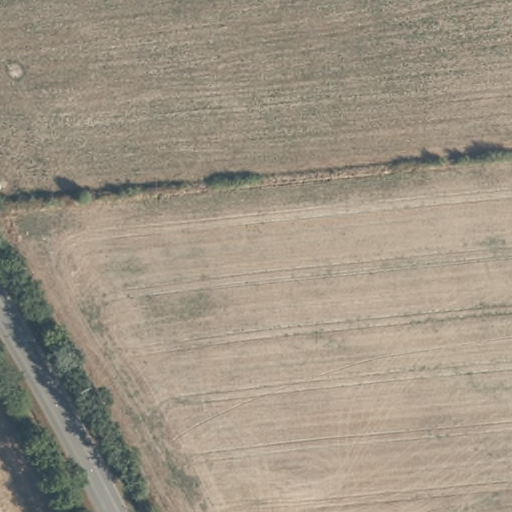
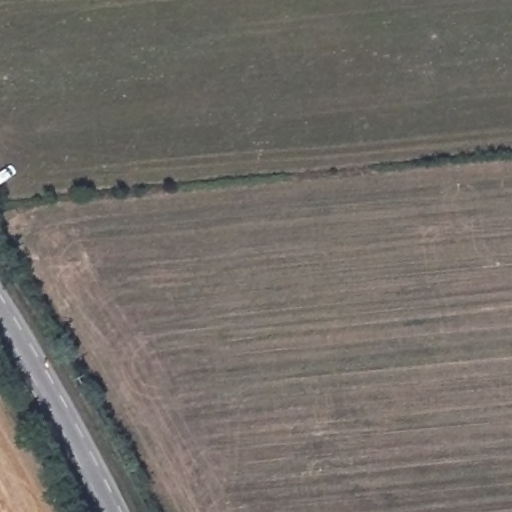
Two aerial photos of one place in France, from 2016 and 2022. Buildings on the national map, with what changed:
[]

